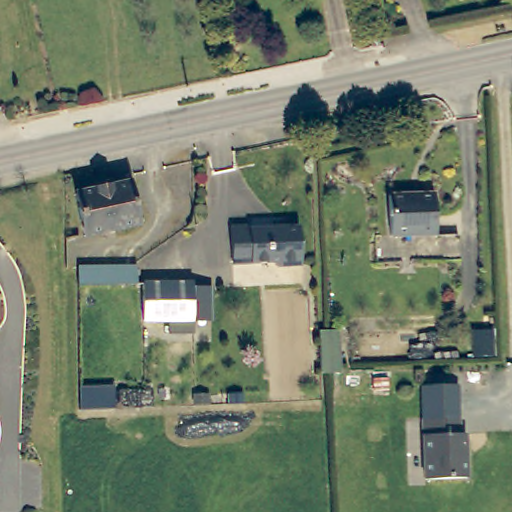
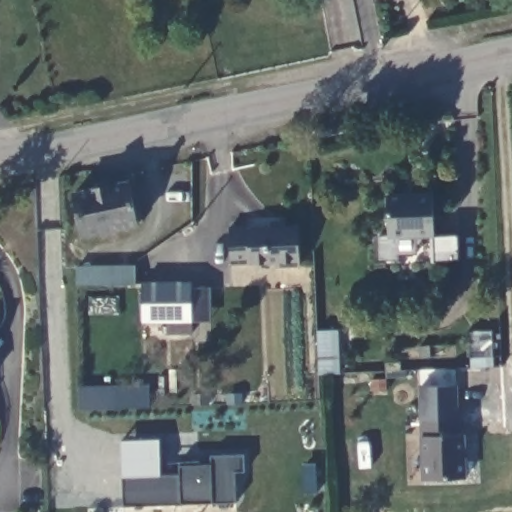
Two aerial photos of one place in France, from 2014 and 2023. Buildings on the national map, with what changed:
unchanged [(132,177),(141,223),(87,236),(77,190),(132,177)]
unchanged [(395,236),(394,190),(441,189),(440,235),(395,236)]
unchanged [(250,225),(250,228),(299,226),(301,262),(277,265),(276,259),(234,262),(232,225),(250,225)]
unchanged [(465,261),(441,262),(440,235),(464,235),(465,261)]
unchanged [(76,267),(136,265),(138,282),(77,285),(76,267)]
unchanged [(212,285),(212,318),(194,318),(194,330),(171,331),(171,318),(144,320),(143,281),(194,280),(194,285),(212,285)]
unchanged [(463,417),(463,432),(465,431),(469,431),(470,475),(429,476),(428,443),(427,417),(427,382),(462,382),(463,417)]
new [(150,407),(79,408),(79,387),(148,385),(150,407)]
new [(160,438),(162,475),(179,475),(179,465),(210,463),(210,455),(244,455),(244,472),(236,471),(236,502),(123,507),(120,441),(160,438)]

